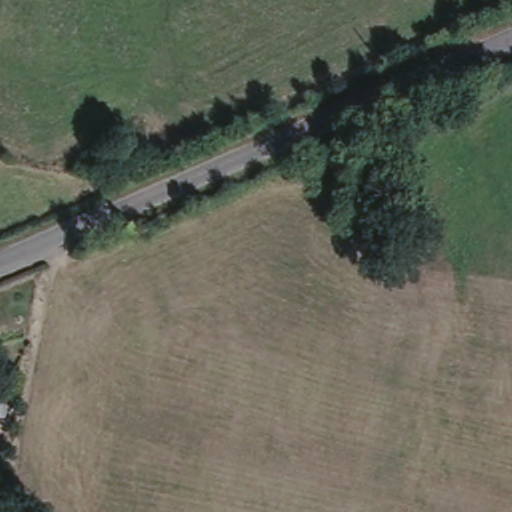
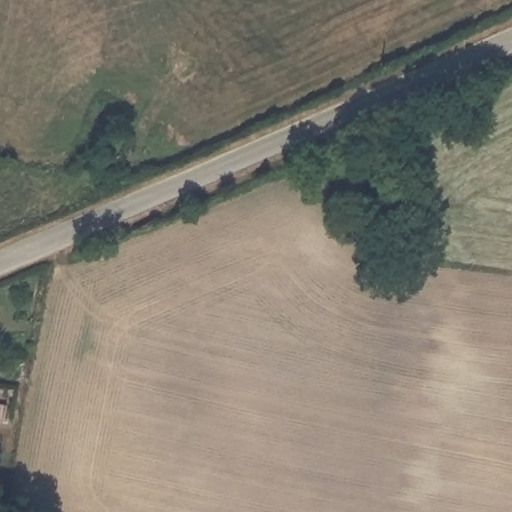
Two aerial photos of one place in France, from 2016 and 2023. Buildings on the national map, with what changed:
[]

